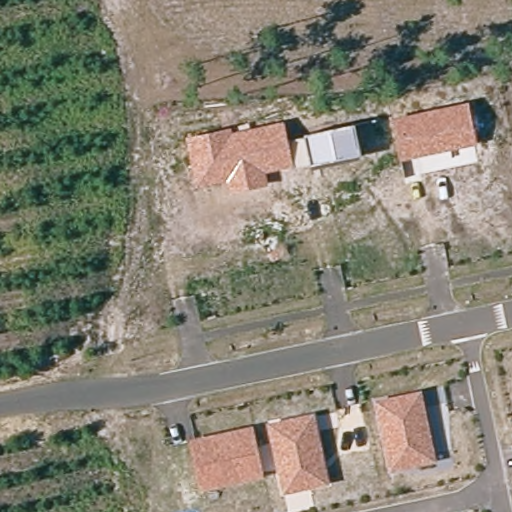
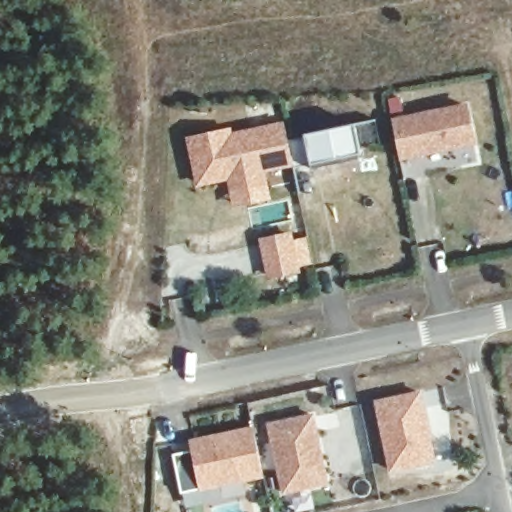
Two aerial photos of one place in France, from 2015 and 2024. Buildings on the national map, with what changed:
unchanged [(400,159),(391,117),(468,102),(477,143),(400,159)]
unchanged [(186,136),(232,128),(233,131),(284,122),(287,139),(293,167),(266,172),(270,186),(230,194),(227,180),(196,186),(186,136)]
unchanged [(311,162),(293,167),(287,139),(305,134),(355,123),(362,157),(312,167),(311,162)]
new [(292,230),(294,238),(307,235),(313,265),(300,268),(301,272),(266,280),(257,237),(292,230)]
unchanged [(374,400),(421,390),(437,463),(388,469),(374,400)]
unchanged [(266,423),(315,413),(330,486),(282,494),(266,423)]
unchanged [(190,438),(254,426),(263,479),(200,491),(190,438)]
new [(188,456),(195,491),(180,494),(173,459),(188,456)]

